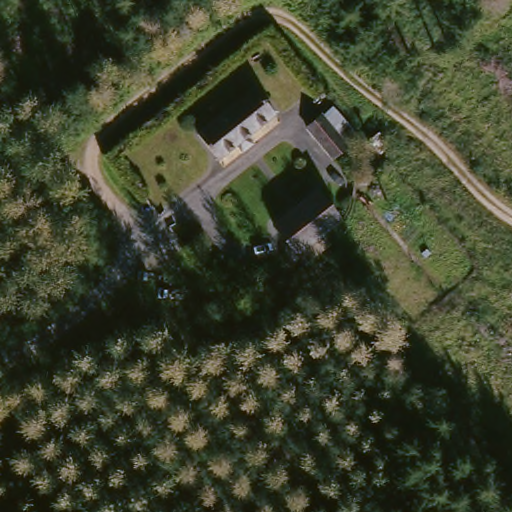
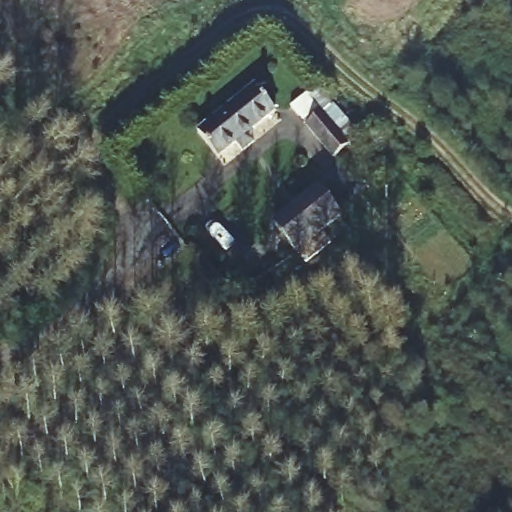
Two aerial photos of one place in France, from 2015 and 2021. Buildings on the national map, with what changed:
unchanged [(276,112),(219,161),(195,134),(252,84),(276,112)]
unchanged [(329,152),(309,128),(328,112),(348,136),(329,152)]
unchanged [(294,251),(274,228),(319,189),(338,212),(294,251)]

